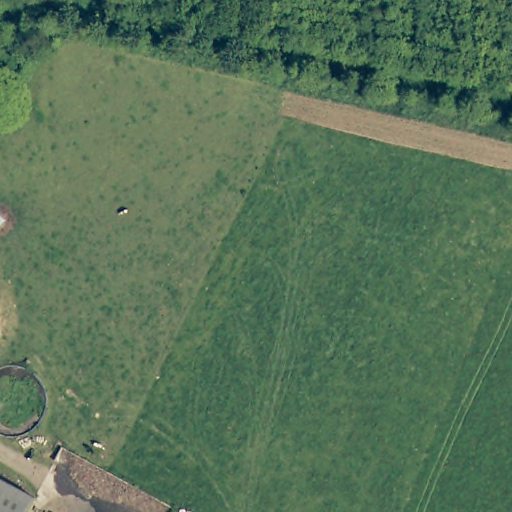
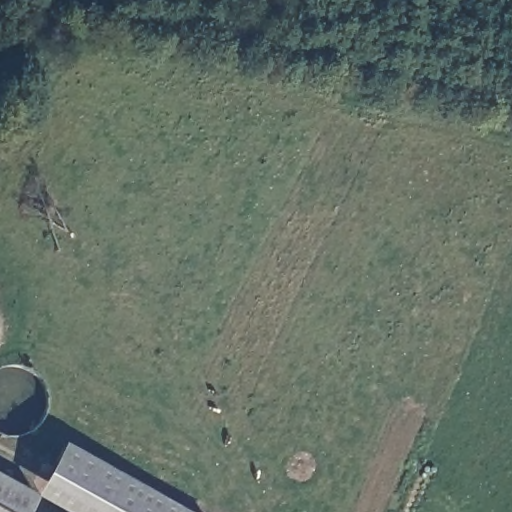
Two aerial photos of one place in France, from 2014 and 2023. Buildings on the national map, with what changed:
new [(63,445),(187,512),(61,512),(34,496),(63,445)]
unchanged [(32,499),(25,512),(0,512),(0,481),(32,499)]

